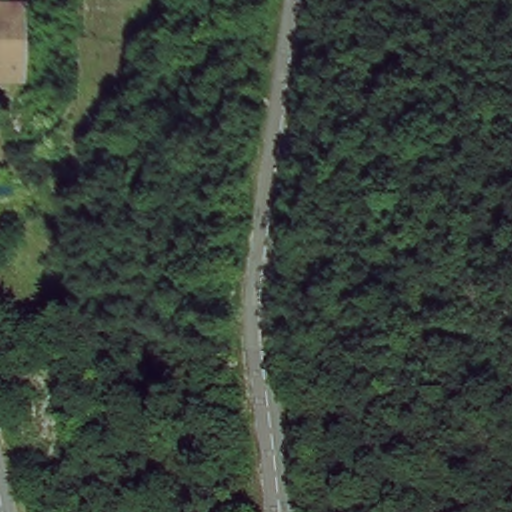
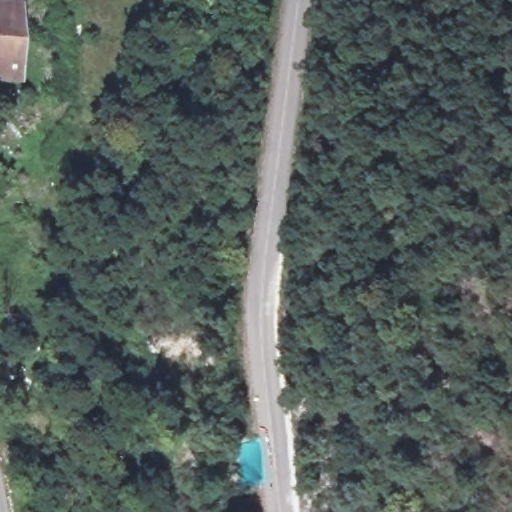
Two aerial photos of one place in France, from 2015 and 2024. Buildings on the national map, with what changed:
unchanged [(13,39),(0,40),(0,2),(6,2),(13,39)]
unchanged [(27,38),(32,74),(0,78),(0,40),(13,39),(27,38)]
unchanged [(53,75),(58,97),(42,101),(37,79),(53,75)]

